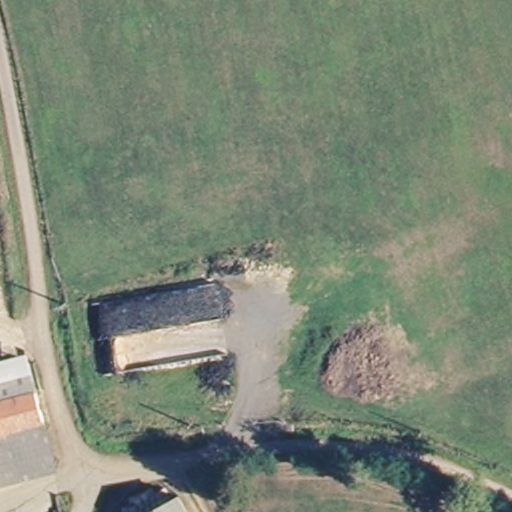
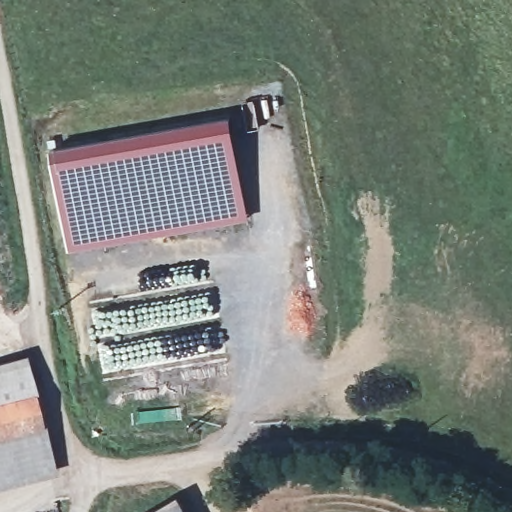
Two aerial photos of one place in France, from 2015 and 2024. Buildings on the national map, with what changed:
new [(249,219),(69,253),(49,150),(231,118),(249,219)]
unchanged [(30,374),(0,377),(0,359),(26,356),(30,374)]
unchanged [(0,408),(0,377),(30,374),(36,404),(0,408)]
unchanged [(0,438),(0,408),(36,404),(41,434),(0,438)]
unchanged [(6,488),(0,484),(0,438),(41,434),(50,484),(6,488)]
unchanged [(0,489),(0,484),(6,488),(0,489)]
unchanged [(181,500),(188,512),(158,512),(181,500)]

